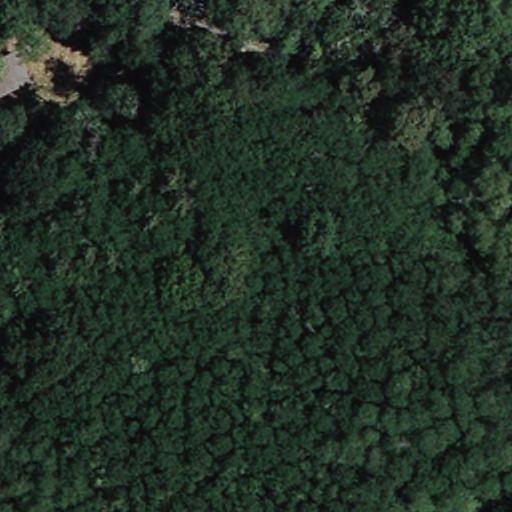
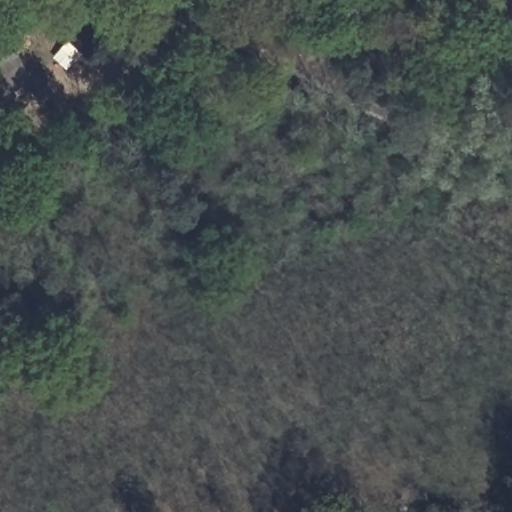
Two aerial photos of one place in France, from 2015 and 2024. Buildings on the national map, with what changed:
unchanged [(10,75),(41,63),(51,86),(19,99),(10,75)]

